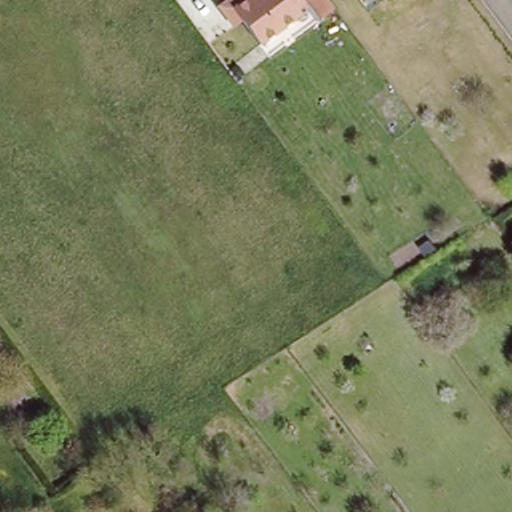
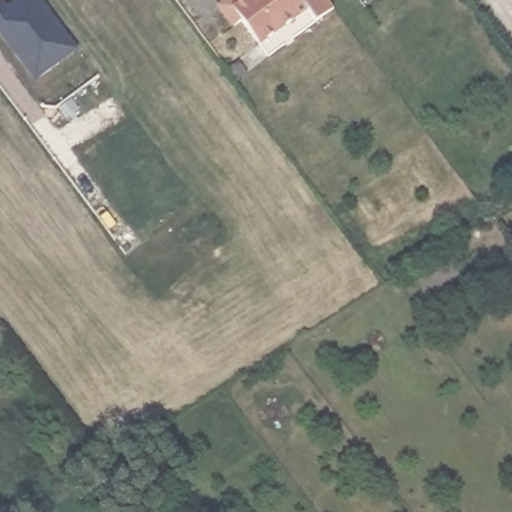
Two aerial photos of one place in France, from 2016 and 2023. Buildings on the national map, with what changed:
new [(0,36),(0,4),(2,2),(7,8),(18,0),(42,0),(78,50),(34,82),(0,36)]
unchanged [(330,17),(312,30),(303,18),(257,53),(238,30),(229,17),(252,0),(317,0),(330,17)]

